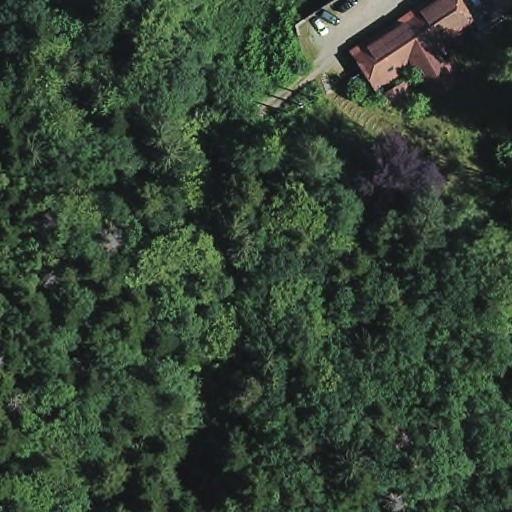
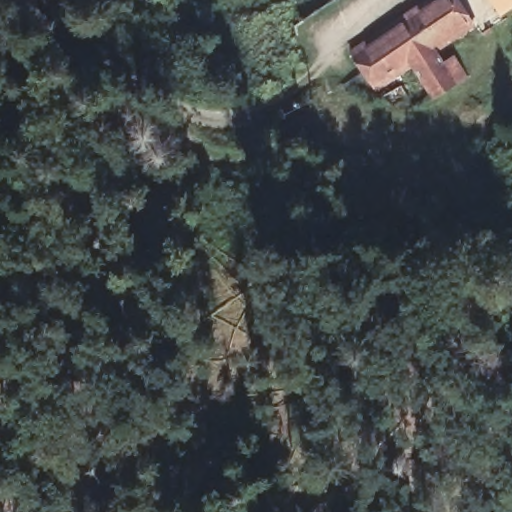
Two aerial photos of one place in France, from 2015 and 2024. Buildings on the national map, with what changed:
unchanged [(452,0),(469,25),(430,51),(440,65),(449,58),(462,77),(429,99),(408,67),(371,91),(345,53),(425,0),(452,0)]
unchanged [(512,0),(512,3),(507,7),(502,0),(512,0)]
unchanged [(384,98),(400,87),(409,100),(392,111),(384,98)]

